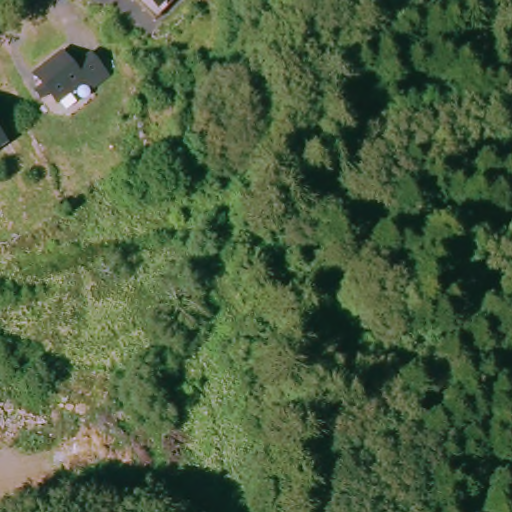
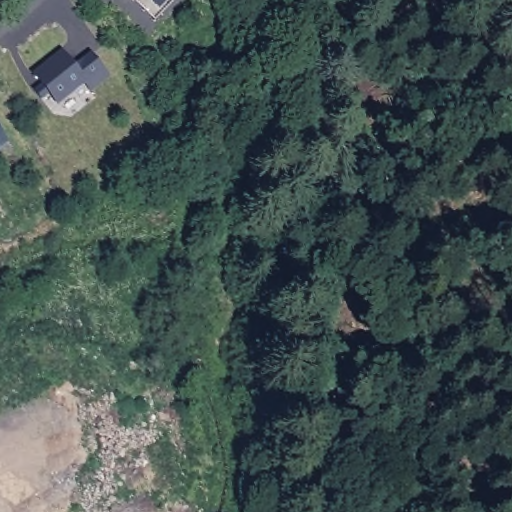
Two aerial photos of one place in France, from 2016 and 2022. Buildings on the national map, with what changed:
unchanged [(169,0),(176,6),(166,15),(150,0),(169,0)]
unchanged [(58,101),(37,72),(63,53),(84,82),(58,101)]
unchanged [(0,119),(11,136),(0,144),(0,119)]

